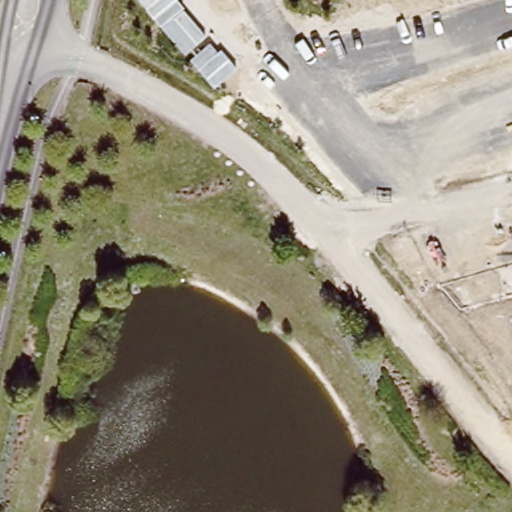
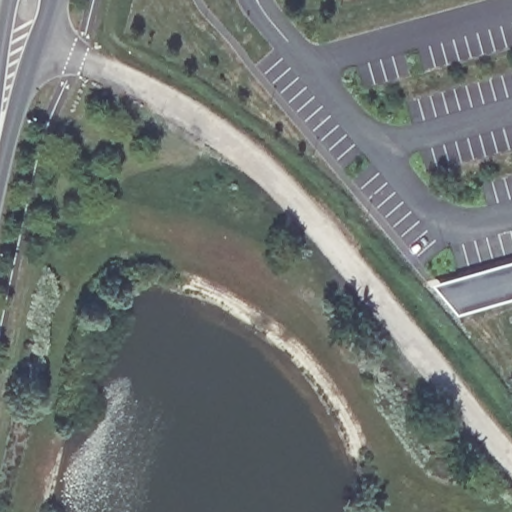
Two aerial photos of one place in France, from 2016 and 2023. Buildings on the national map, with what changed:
new [(512,260),(512,298),(458,313),(432,282),(512,260)]

